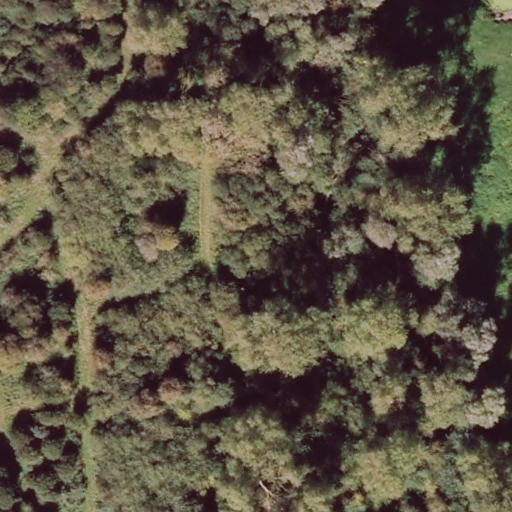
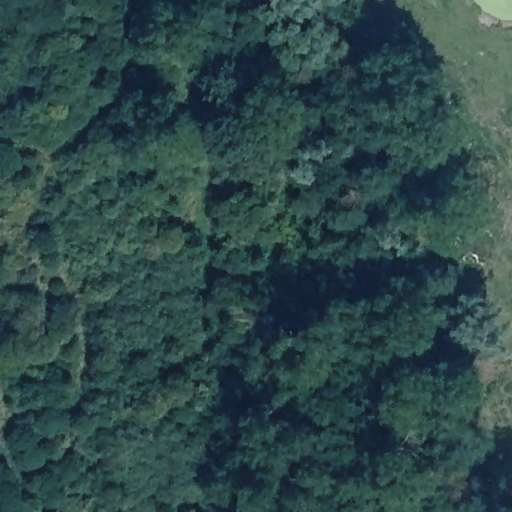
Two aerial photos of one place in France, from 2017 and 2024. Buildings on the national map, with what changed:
[]

